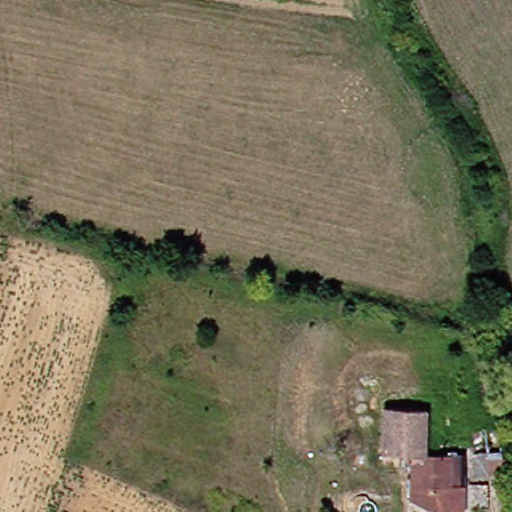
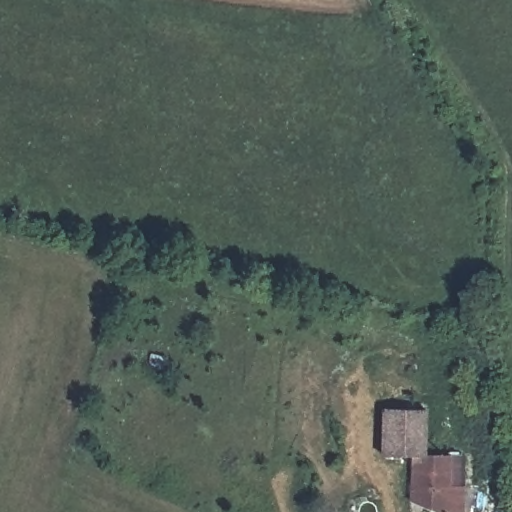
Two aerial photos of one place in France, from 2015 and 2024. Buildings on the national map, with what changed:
unchanged [(412,460),(383,455),(391,409),(431,415),(424,461),(433,461),(427,478),(411,476),(412,460)]
unchanged [(497,477),(476,480),(472,440),(492,437),(497,477)]
unchanged [(433,461),(466,463),(459,512),(432,512),(407,502),(411,476),(427,478),(433,461)]

